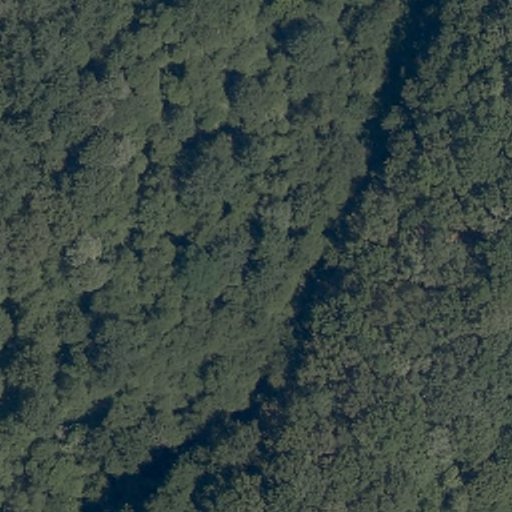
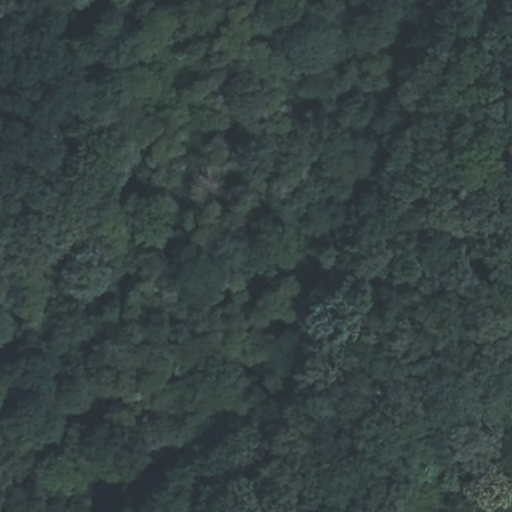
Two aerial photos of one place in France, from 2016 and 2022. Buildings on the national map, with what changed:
[]

